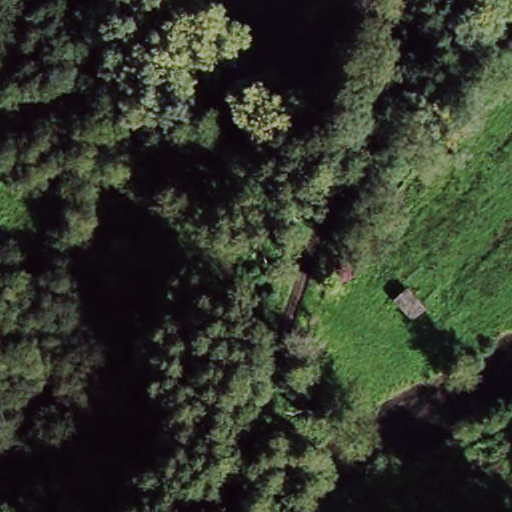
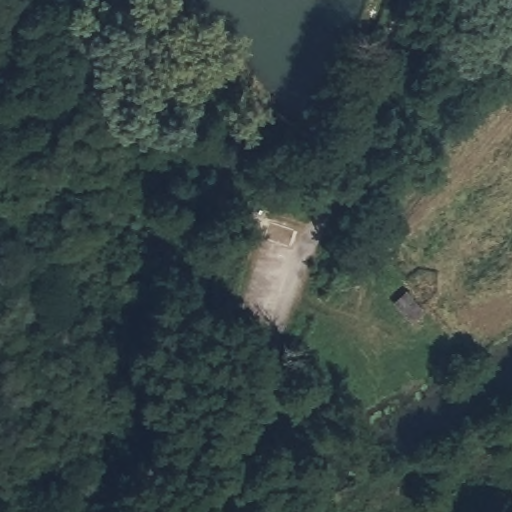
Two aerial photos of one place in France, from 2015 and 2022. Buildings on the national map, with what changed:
unchanged [(427,312),(411,328),(389,306),(408,289),(427,312)]

